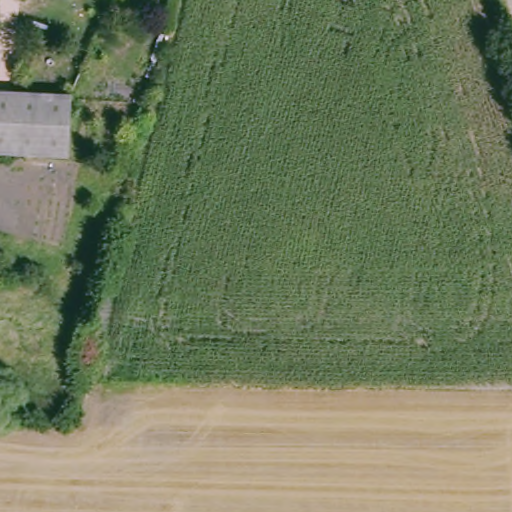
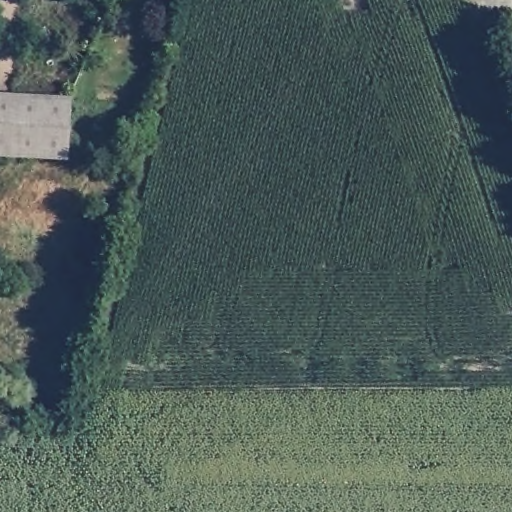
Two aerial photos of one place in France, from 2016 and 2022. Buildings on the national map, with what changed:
unchanged [(65,160),(0,156),(0,95),(70,104),(65,160)]

